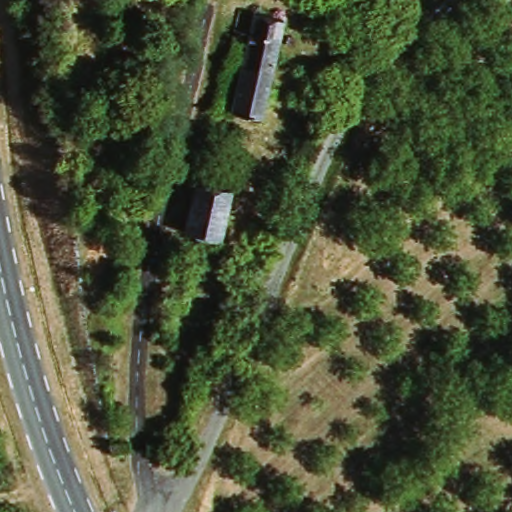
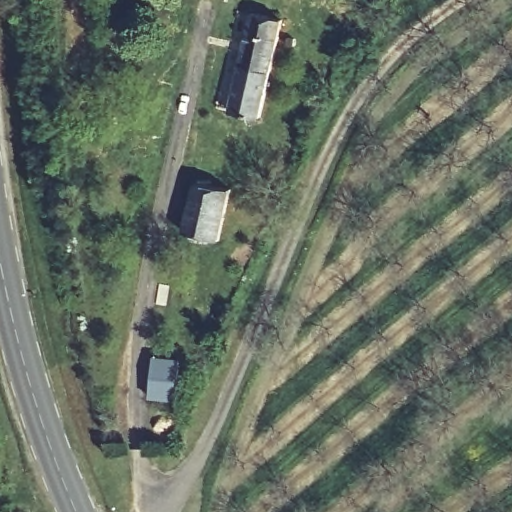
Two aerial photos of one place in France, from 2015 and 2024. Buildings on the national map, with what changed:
unchanged [(280,23),(259,122),(230,115),(250,16),(280,23)]
unchanged [(185,228),(195,187),(225,191),(215,235),(185,228)]
new [(175,354),(172,402),(152,401),(152,356),(175,354)]

